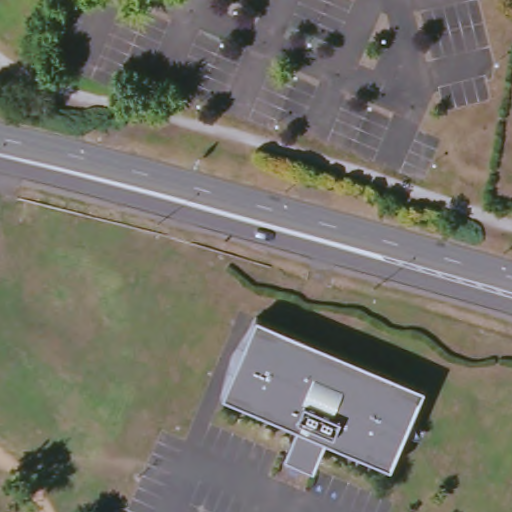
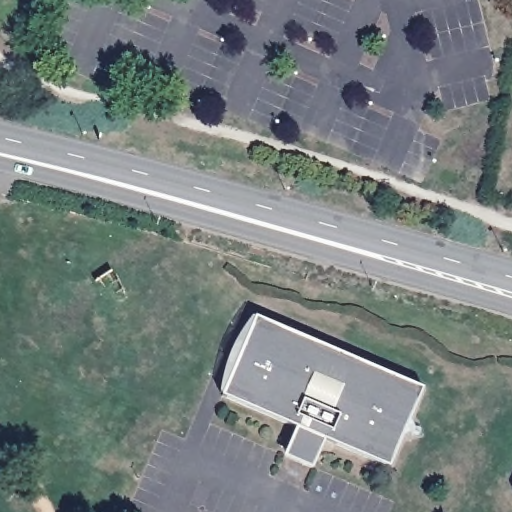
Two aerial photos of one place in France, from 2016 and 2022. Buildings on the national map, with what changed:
unchanged [(320,440),(311,462),(282,450),(292,428),(217,396),(252,316),(420,388),(385,468),(320,440)]

